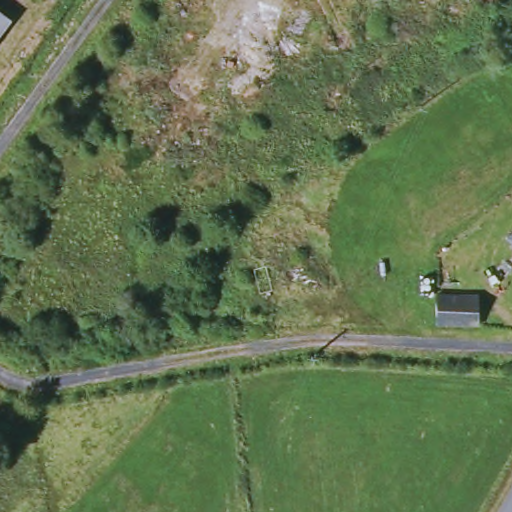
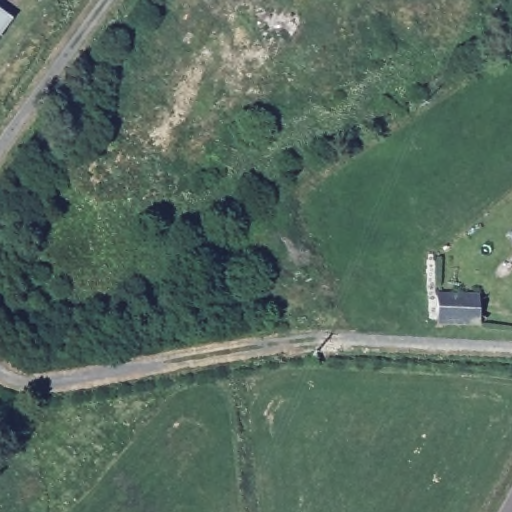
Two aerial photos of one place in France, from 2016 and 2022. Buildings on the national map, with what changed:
unchanged [(0,37),(0,11),(12,20),(0,37)]
unchanged [(432,327),(437,297),(481,298),(481,328),(481,329),(431,327),(432,327)]

